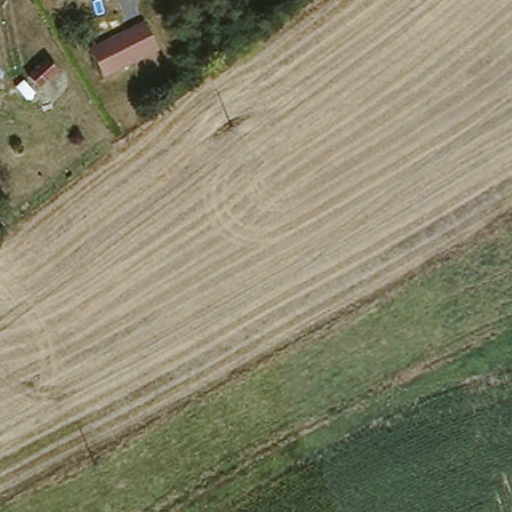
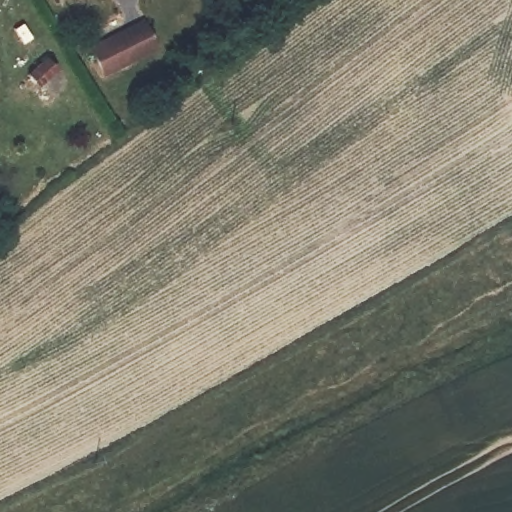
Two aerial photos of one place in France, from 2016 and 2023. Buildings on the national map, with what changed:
unchanged [(147,22),(160,52),(107,78),(94,50),(147,22)]
unchanged [(44,60),(54,72),(18,106),(7,95),(44,60)]

